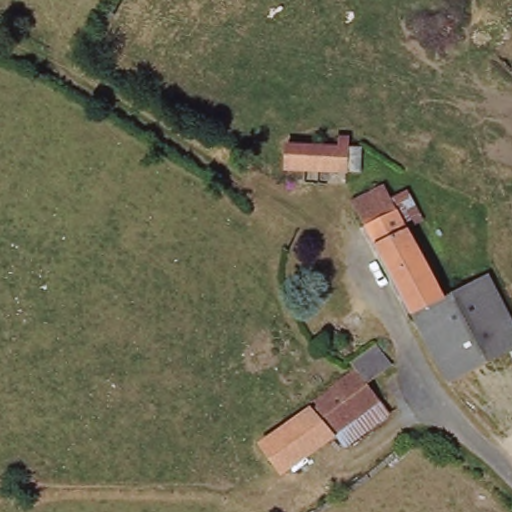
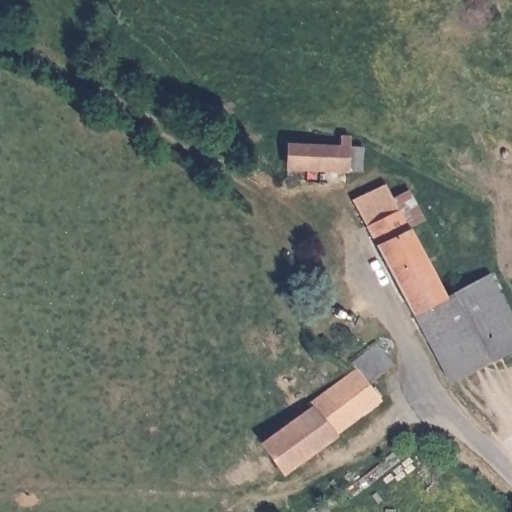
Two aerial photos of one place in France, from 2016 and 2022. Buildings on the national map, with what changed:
unchanged [(344,170),(282,169),(286,138),(337,140),(339,131),(348,133),(351,134),(344,170)]
unchanged [(413,313),(373,248),(344,203),(377,182),(442,298),(413,313)]
unchanged [(487,279),(512,330),(512,349),(455,378),(422,327),(413,313),(442,298),(487,279)]
unchanged [(308,404),(307,400),(356,367),(353,360),(377,344),(393,368),(369,385),(378,398),(337,429),(315,448),(287,461),(278,467),(258,438),(288,417),(308,404)]
unchanged [(378,398),(390,413),(347,445),(337,429),(378,398)]

